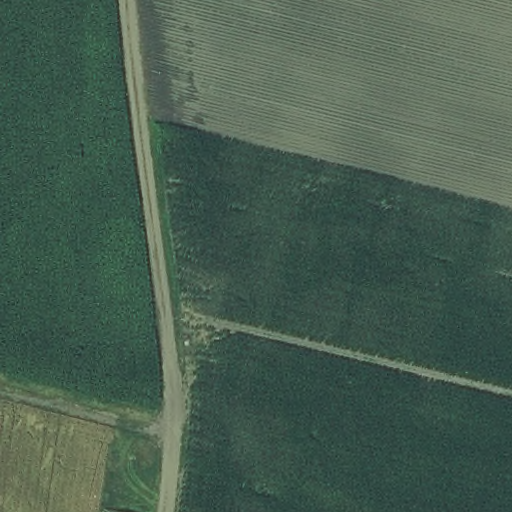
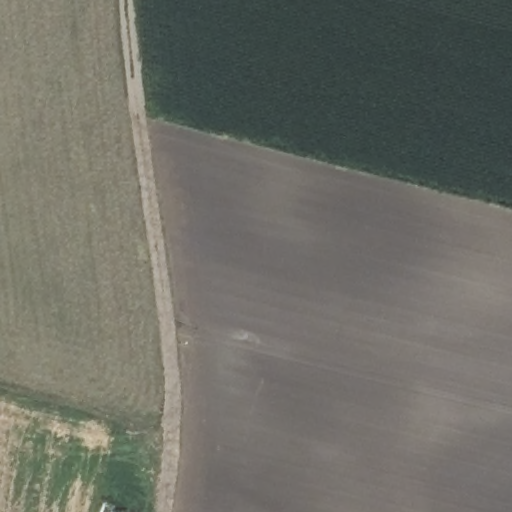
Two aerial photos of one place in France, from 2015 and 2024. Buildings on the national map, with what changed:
unchanged [(114,501),(150,504),(149,512),(113,512),(114,501)]

